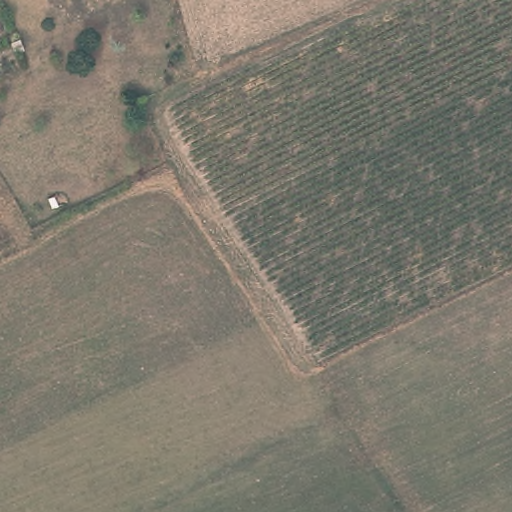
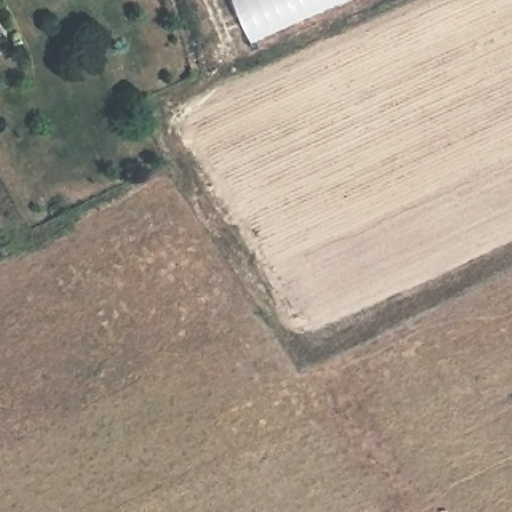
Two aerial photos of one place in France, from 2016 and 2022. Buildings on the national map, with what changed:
new [(233,0),(346,0),(252,41),(233,0)]

